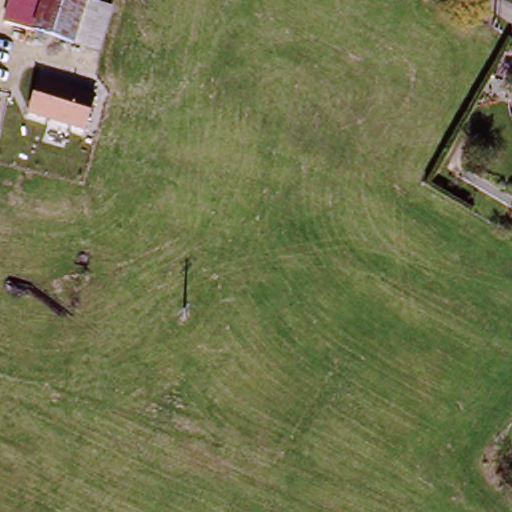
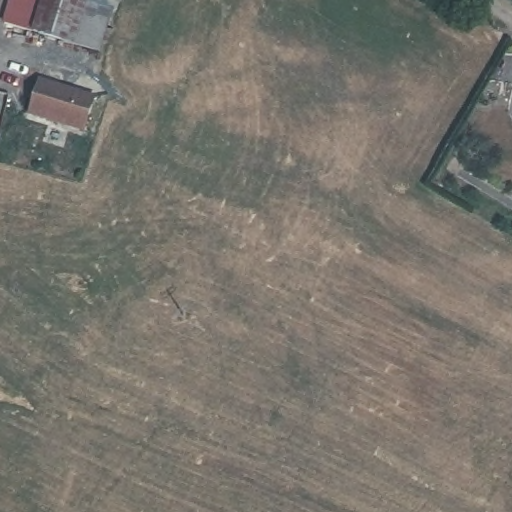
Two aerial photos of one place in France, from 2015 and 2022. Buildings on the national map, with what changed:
unchanged [(30,31),(1,19),(7,0),(40,0),(30,31)]
unchanged [(66,42),(30,31),(40,0),(79,0),(66,42)]
unchanged [(79,0),(103,0),(101,6),(113,11),(100,54),(66,42),(79,0)]
unchanged [(96,99),(85,137),(25,119),(35,79),(96,99)]

